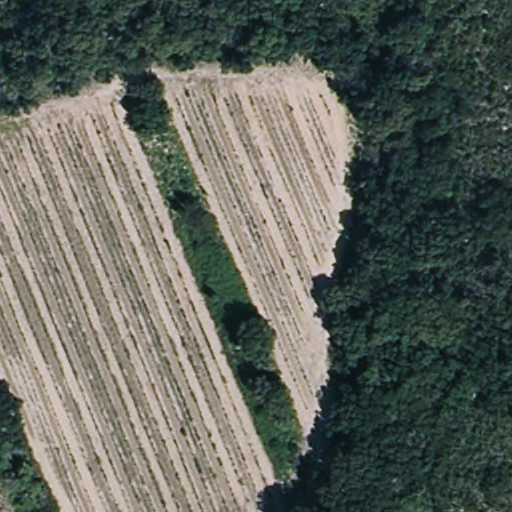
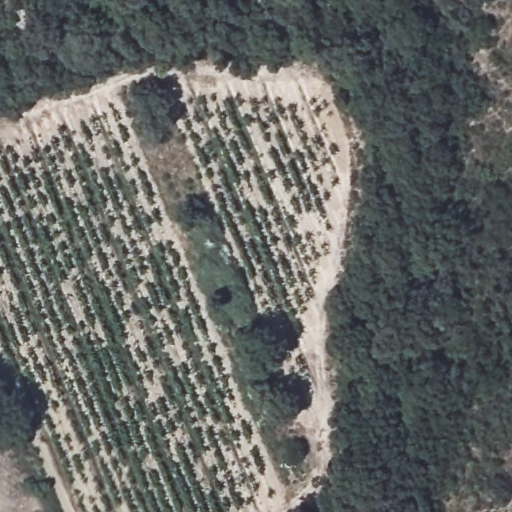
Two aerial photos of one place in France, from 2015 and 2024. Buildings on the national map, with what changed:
[]

